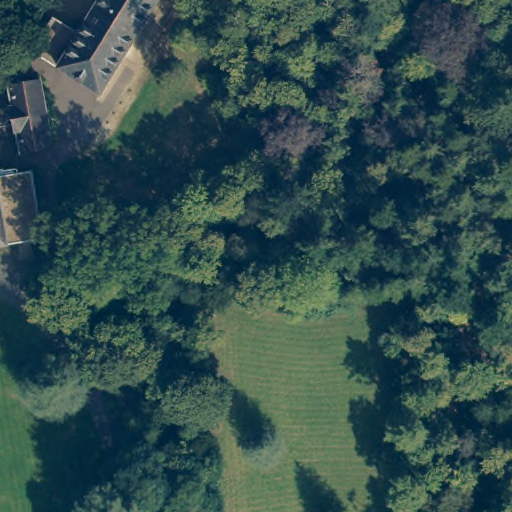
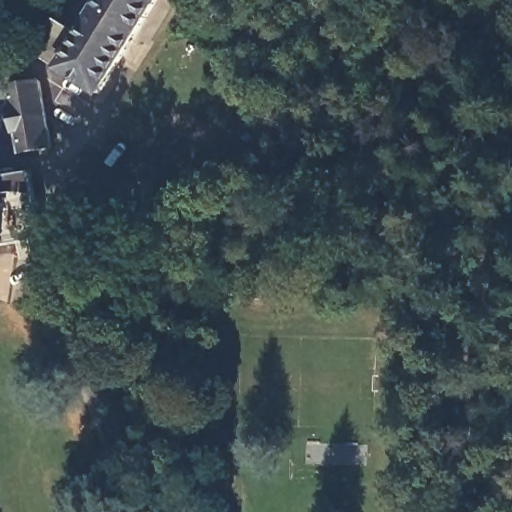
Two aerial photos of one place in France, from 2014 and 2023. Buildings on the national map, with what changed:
unchanged [(52,15),(79,30),(84,22),(69,12),(77,0),(156,0),(99,91),(31,50),(52,15)]
unchanged [(53,147),(20,155),(15,135),(12,135),(7,110),(10,109),(7,90),(41,84),(53,147)]
unchanged [(37,240),(0,247),(0,177),(26,172),(37,240)]

